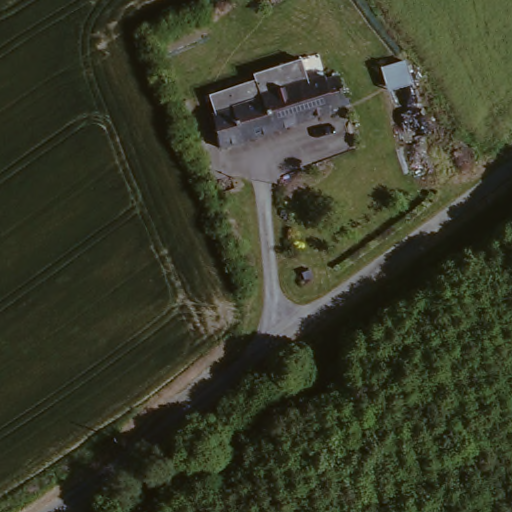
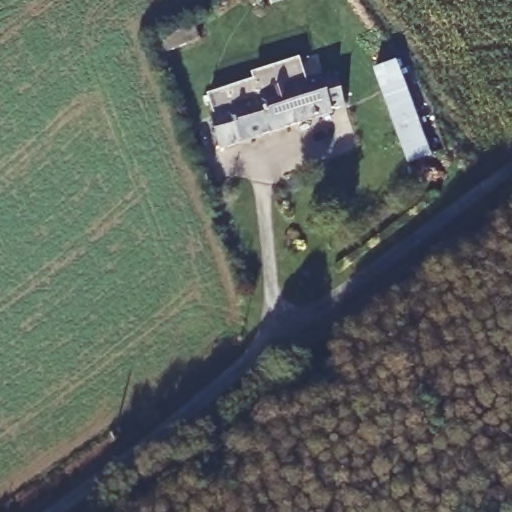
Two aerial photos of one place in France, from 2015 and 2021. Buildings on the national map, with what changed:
new [(401,60),(432,151),(408,159),(370,71),(401,60)]
unchanged [(220,113),(239,106),(238,103),(268,93),(267,90),(329,71),(330,76),(344,72),(352,97),(338,102),(340,108),(230,145),(220,113)]
demolished [(417,82),(432,122),(408,130),(395,88),(417,82)]

